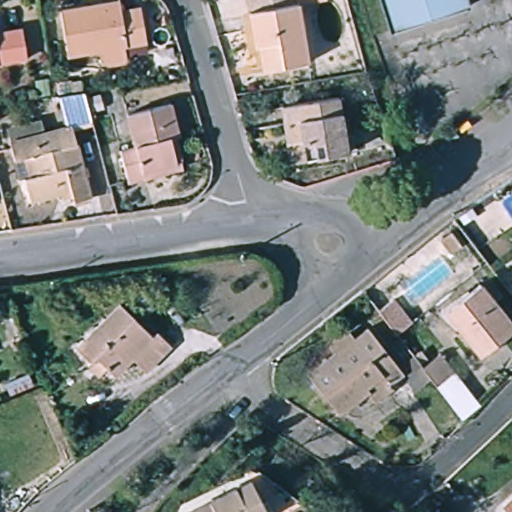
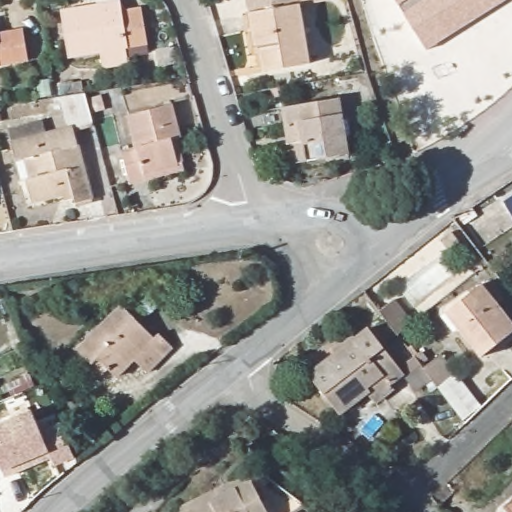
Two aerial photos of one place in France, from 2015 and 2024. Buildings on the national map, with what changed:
unchanged [(323,5),(296,9),(306,68),(261,76),(257,53),(254,53),(244,0),(321,0),(323,5)]
demolished [(467,8),(389,32),(379,0),(464,0),(467,8)]
new [(426,50),(394,0),(506,0),(426,50)]
unchanged [(120,5),(123,5),(125,11),(141,9),(148,44),(124,48),(126,64),(101,68),(98,52),(67,57),(59,11),(118,1),(120,5)]
unchanged [(28,60),(0,65),(0,33),(22,29),(28,60)]
unchanged [(346,159),(291,169),(281,113),(337,103),(346,159)]
unchanged [(174,137),(170,138),(178,170),(124,184),(116,152),(130,148),(121,117),(166,104),(174,137)]
unchanged [(70,141),(61,111),(85,107),(93,135),(70,141)]
unchanged [(70,141),(91,214),(74,218),(71,207),(30,218),(19,174),(15,175),(7,145),(34,138),(38,149),(70,141)]
unchanged [(461,245),(451,253),(441,239),(450,231),(461,245)]
unchanged [(86,354),(90,350),(77,337),(121,293),(153,325),(157,321),(172,335),(148,359),(134,345),(115,364),(108,357),(98,366),(86,354)]
unchanged [(512,316),(512,351),(494,365),(459,321),(494,293),(512,316)]
new [(396,299),(411,319),(396,331),(380,312),(396,299)]
unchanged [(397,379),(384,388),(387,393),(368,407),(360,397),(334,417),(304,377),(361,334),(397,379)]
unchanged [(33,384),(10,393),(5,381),(28,372),(33,384)]
new [(40,430),(59,422),(75,458),(54,466),(51,459),(6,477),(3,469),(0,463),(0,423),(31,410),(40,430)]
unchanged [(315,483),(300,500),(263,472),(276,454),(315,483)]
unchanged [(221,512),(255,494),(264,512),(221,512)]

